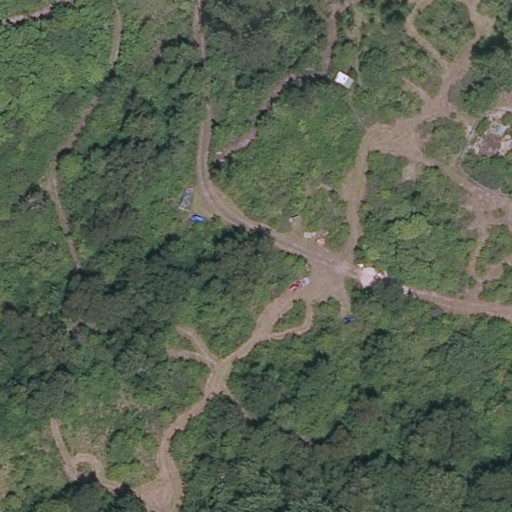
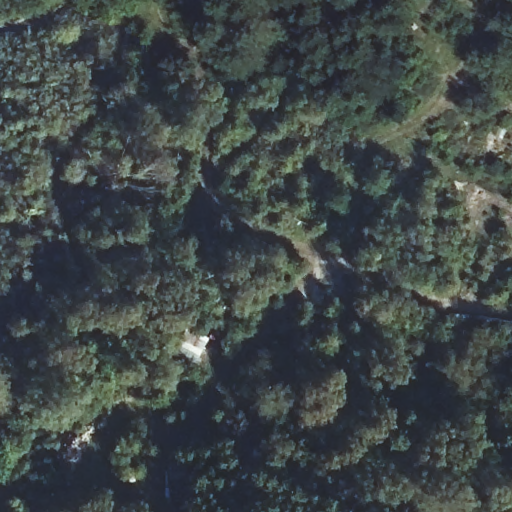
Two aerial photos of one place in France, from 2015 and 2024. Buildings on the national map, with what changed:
[]

